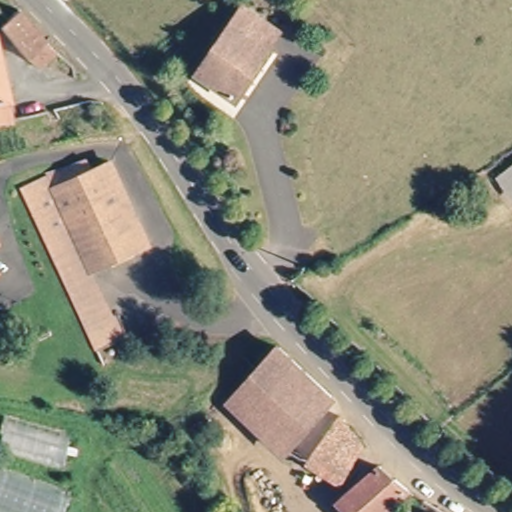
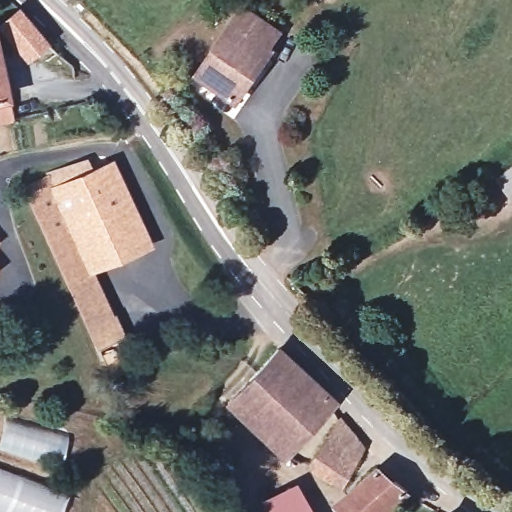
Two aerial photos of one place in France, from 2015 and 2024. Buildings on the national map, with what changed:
unchanged [(255,7),(262,13),(290,35),(280,48),(283,50),(242,104),(203,74),(229,40),(255,7)]
unchanged [(40,70),(4,24),(23,8),(59,55),(40,70)]
unchanged [(6,125),(0,126),(0,68),(5,99),(1,100),(5,117),(6,125)]
unchanged [(115,151),(155,237),(93,268),(52,182),(57,180),(115,151)]
unchanged [(125,335),(131,331),(140,348),(108,364),(19,179),(49,164),(57,180),(52,182),(93,268),(125,335)]
unchanged [(512,174),(512,194),(502,181),(512,174)]
unchanged [(326,401),(282,447),(230,397),(281,343),(335,392),(326,401)]
unchanged [(336,483),(282,447),(326,401),(364,450),(336,483)]
unchanged [(346,512),(340,505),(381,466),(405,497),(389,512),(346,512)]
unchanged [(67,496),(61,512),(11,512),(0,508),(0,471),(67,496)]
new [(265,512),(260,499),(296,480),(314,512),(265,512)]

